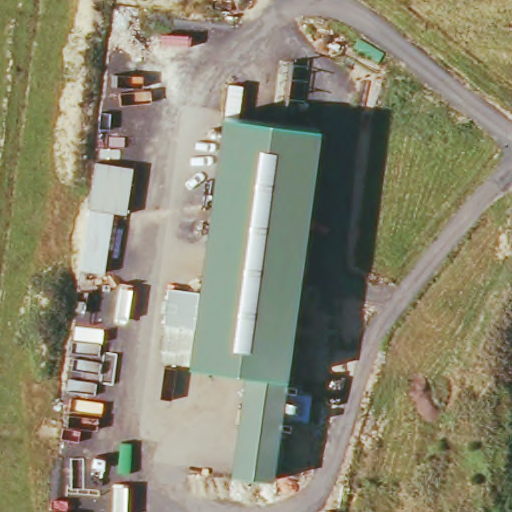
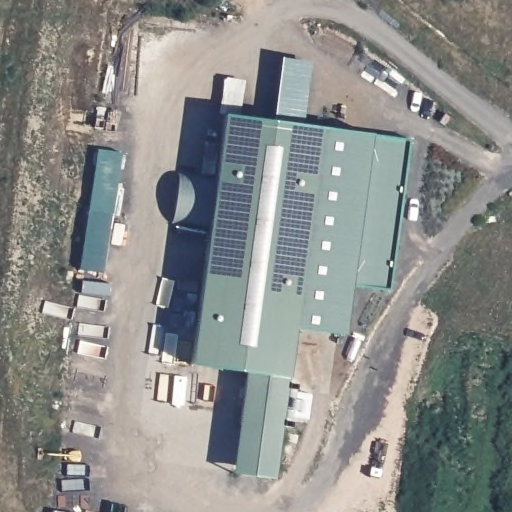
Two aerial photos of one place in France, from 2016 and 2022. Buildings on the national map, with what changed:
new [(311,62),(303,126),(272,123),(280,59),(311,62)]
unchanged [(287,381),(271,483),(230,477),(243,375),(189,367),(220,115),(318,129),(287,381)]
new [(388,290),(350,285),(343,335),(293,328),(318,129),(369,135),(408,141),(388,290)]
new [(126,215),(112,213),(105,274),(80,270),(95,163),(132,169),(126,215)]

